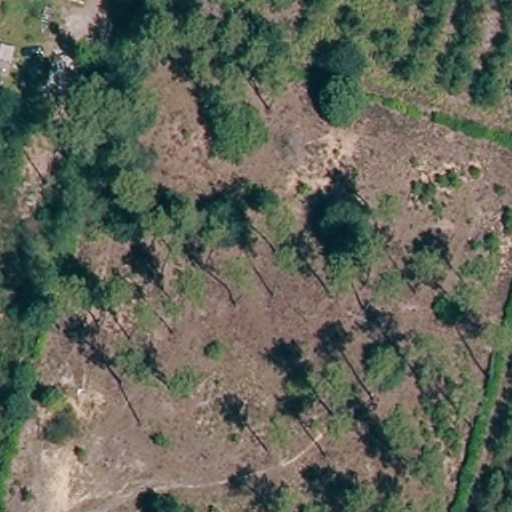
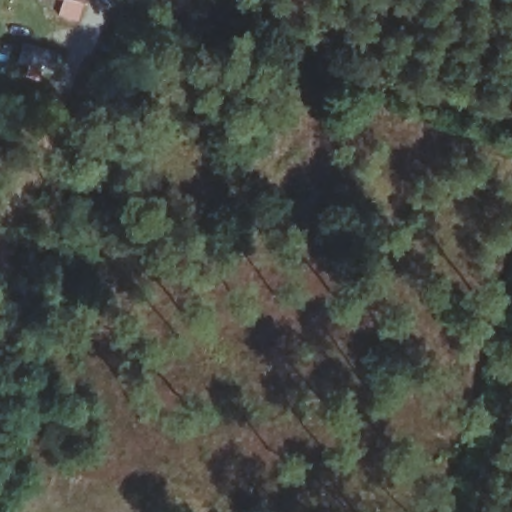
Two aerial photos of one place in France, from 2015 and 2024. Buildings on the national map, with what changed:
unchanged [(74,0),(87,0),(85,4),(74,0)]

